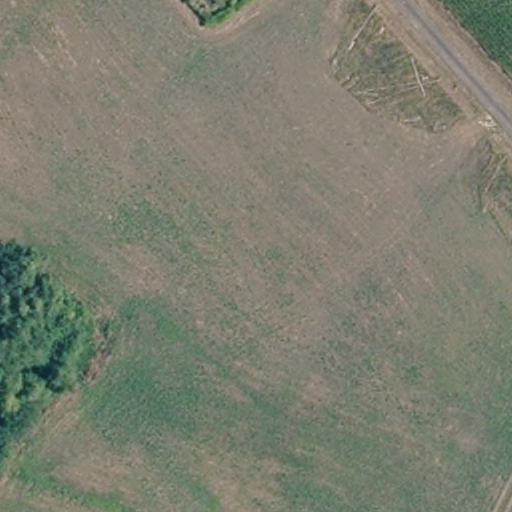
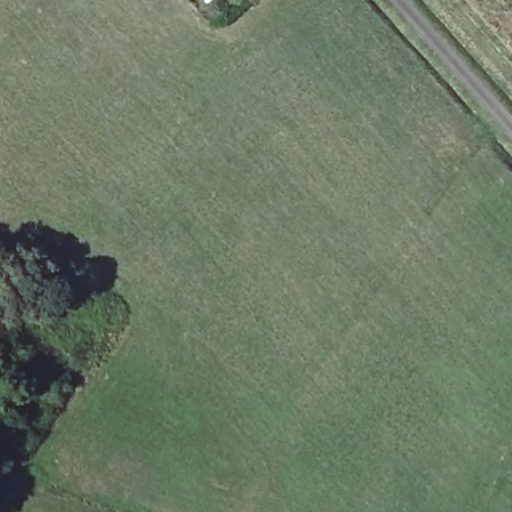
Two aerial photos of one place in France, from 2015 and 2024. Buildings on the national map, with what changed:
[]

